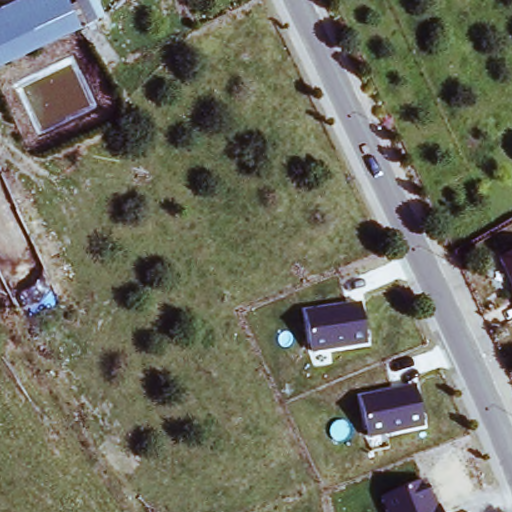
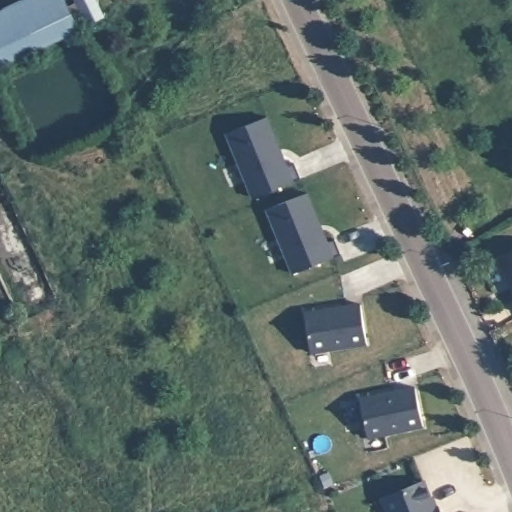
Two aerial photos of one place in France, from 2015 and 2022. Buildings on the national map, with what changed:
unchanged [(26,0),(67,0),(81,32),(0,70),(0,12),(26,0)]
unchanged [(90,21),(78,0),(96,0),(103,14),(90,21)]
new [(270,116),(288,169),(295,165),(301,179),(251,199),(226,136),(270,116)]
new [(308,193),(330,244),(335,241),(341,256),(292,275),(266,211),(308,193)]
unchanged [(512,256),(512,269),(507,259),(512,256)]
unchanged [(367,344),(313,352),(307,311),(361,303),(367,344)]
unchanged [(425,427),(370,438),(361,396),(415,387),(425,427)]
unchanged [(439,512),(386,512),(380,498),(427,484),(439,512)]

